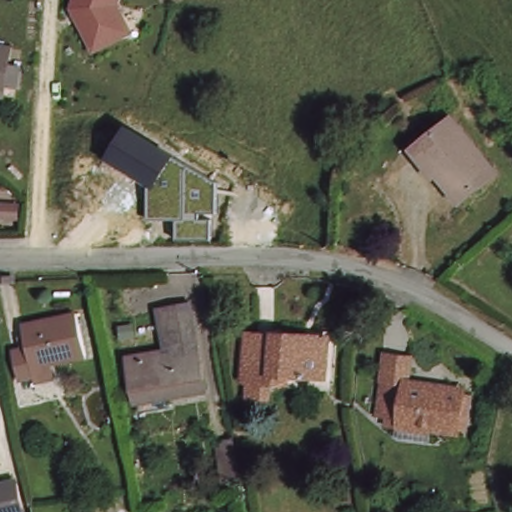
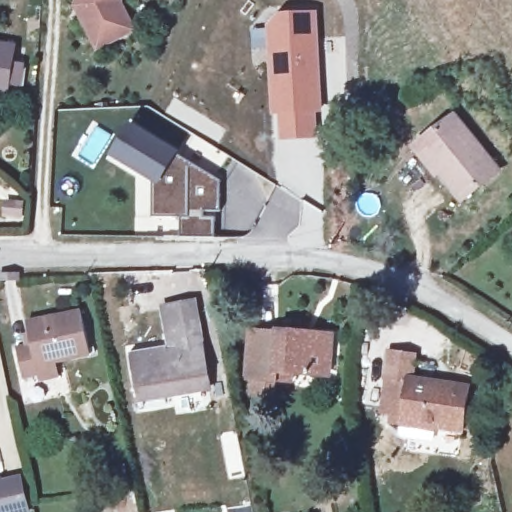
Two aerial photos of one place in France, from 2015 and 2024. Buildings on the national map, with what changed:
unchanged [(138,32),(96,54),(73,7),(75,0),(125,0),(124,3),(138,32)]
new [(266,27),(266,26),(282,11),(316,9),(323,112),(316,112),(318,138),(278,140),(276,114),(269,115),(266,49),(251,49),(249,29),(266,27)]
unchanged [(13,51),(9,91),(0,90),(0,49),(13,51)]
unchanged [(447,193),(432,177),(436,174),(414,149),(447,122),(489,174),(456,203),(447,193)]
unchanged [(130,130),(221,181),(221,213),(205,213),(205,219),(216,219),(217,240),(181,240),(181,220),(153,220),(153,181),(113,159),(130,130)]
unchanged [(168,310),(190,305),(207,389),(143,403),(133,360),(176,351),(168,310)]
unchanged [(21,323),(74,312),(85,353),(28,365),(30,375),(16,378),(9,350),(25,346),(21,323)]
unchanged [(243,380),(248,334),(274,337),(274,333),(325,336),(321,378),(269,373),(268,381),(243,380)]
unchanged [(399,437),(399,422),(378,418),(381,350),(419,355),(416,380),(469,388),(466,443),(399,437)]
unchanged [(16,484),(20,511),(20,512),(0,512),(0,486),(16,484)]

